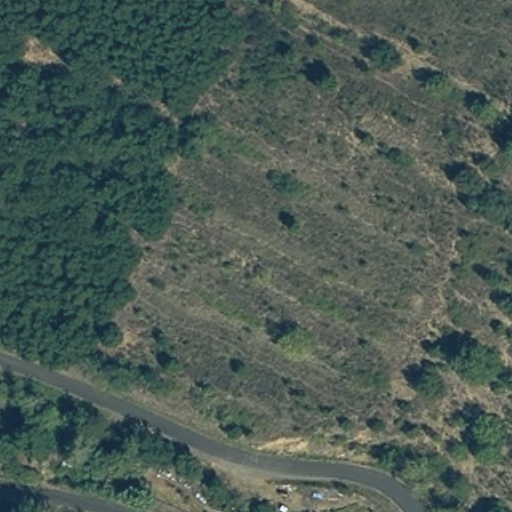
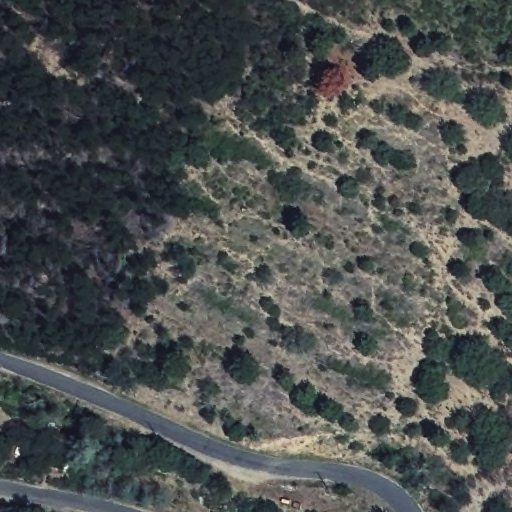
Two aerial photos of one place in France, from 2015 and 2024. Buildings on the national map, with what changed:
unchanged [(71,448),(62,477),(41,470),(48,442),(71,448)]

